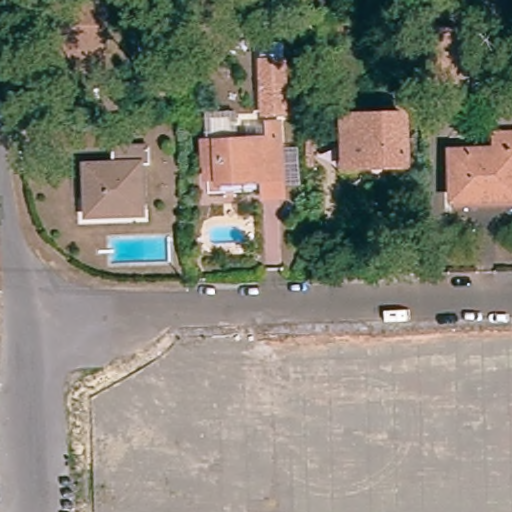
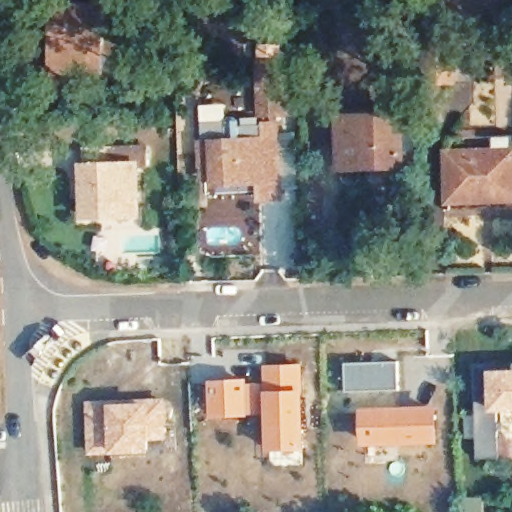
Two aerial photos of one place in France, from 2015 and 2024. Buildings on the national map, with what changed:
unchanged [(54,6),(100,7),(99,70),(61,69),(62,25),(54,25),(54,6)]
unchanged [(496,32),(481,30),(482,11),(498,13),(496,32)]
unchanged [(454,32),(454,82),(424,82),(424,32),(454,32)]
unchanged [(286,123),(263,124),(261,69),(284,68),(286,123)]
unchanged [(359,163),(359,172),(341,172),(339,123),(402,122),(403,162),(359,163)]
unchanged [(204,184),(203,147),(268,145),(267,131),(275,131),(277,186),(280,186),(280,203),(261,204),(260,187),(216,188),(216,183),(204,184)]
unchanged [(444,159),(489,158),(488,142),(512,142),(512,204),(445,206),(444,159)]
unchanged [(109,154),(137,154),(139,220),(84,222),(83,172),(109,171),(109,154)]
new [(400,362),(400,390),(347,391),(347,364),(400,362)]
new [(249,378),(265,380),(265,366),(304,364),(306,390),(307,451),(267,451),(267,417),(211,419),(210,381),(249,378)]
new [(496,370),(512,370),(512,413),(500,413),(500,457),(478,458),(476,365),(495,364),(496,370)]
demolished [(116,375),(169,374),(172,510),(119,512),(118,457),(125,437),(125,427),(117,407),(116,375)]
new [(108,400),(109,404),(148,403),(147,398),(167,398),(167,440),(151,440),(151,453),(110,454),(89,454),(87,402),(108,400)]
new [(440,406),(440,444),(362,446),(362,409),(440,406)]

